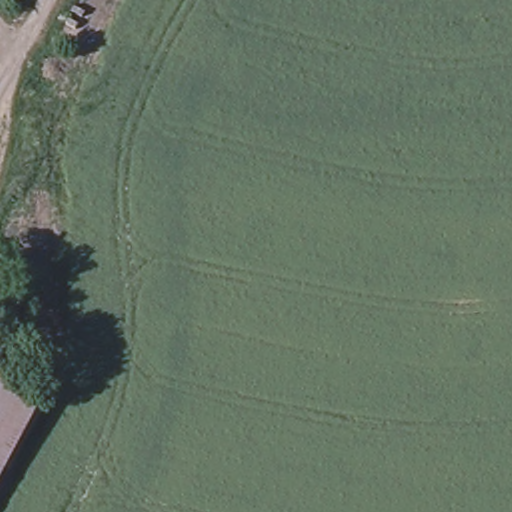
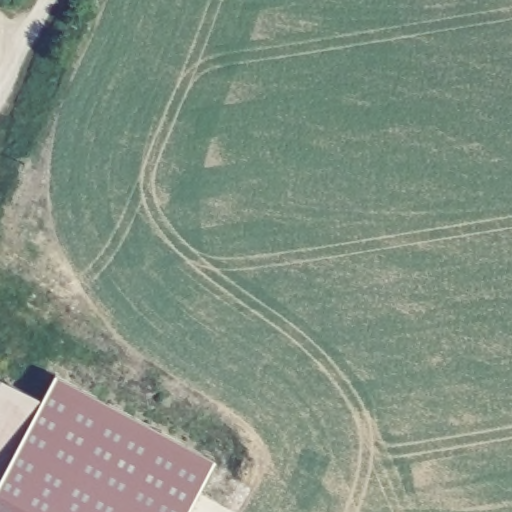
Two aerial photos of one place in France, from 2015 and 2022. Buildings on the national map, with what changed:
new [(55,374),(215,460),(187,512),(0,512),(0,475),(40,402),(55,374)]
unchanged [(0,475),(0,380),(40,402),(0,475)]

